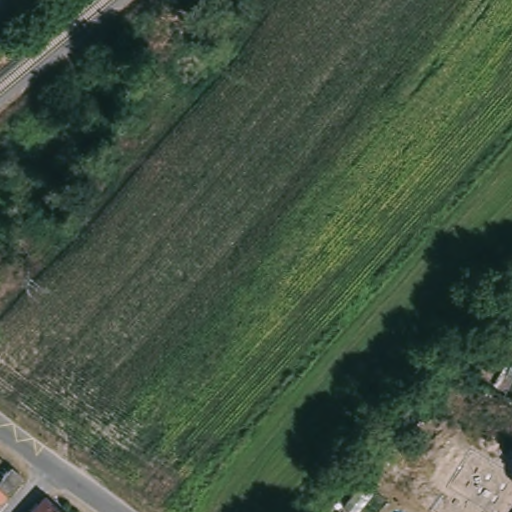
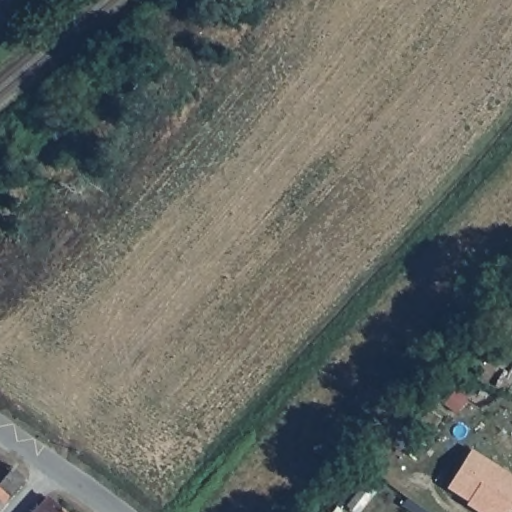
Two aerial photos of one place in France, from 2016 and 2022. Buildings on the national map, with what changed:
new [(512,475),(512,510),(509,509),(507,512),(476,512),(467,508),(469,504),(446,488),(471,449),(512,475)]
unchanged [(38,504),(49,512),(31,512),(38,504)]

